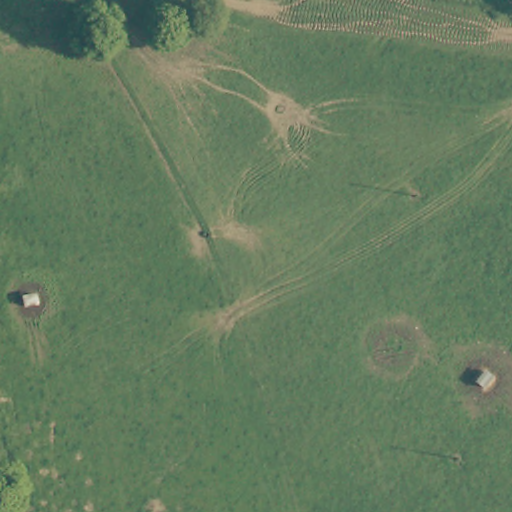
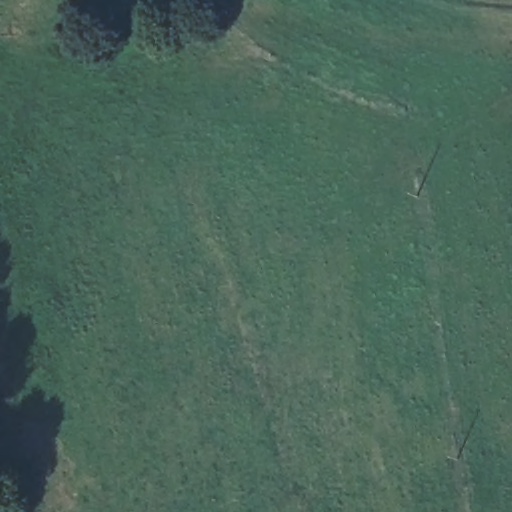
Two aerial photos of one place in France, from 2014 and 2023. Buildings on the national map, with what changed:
[]

